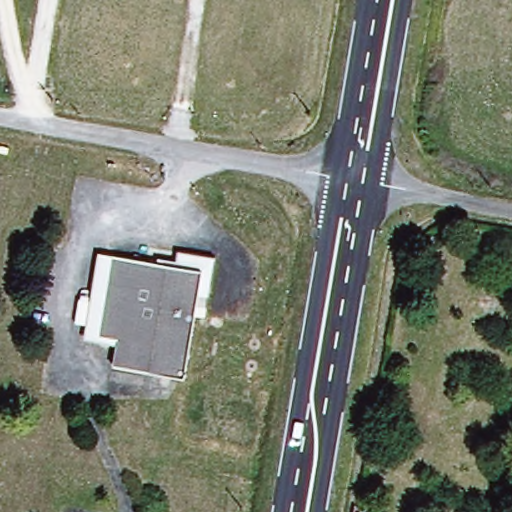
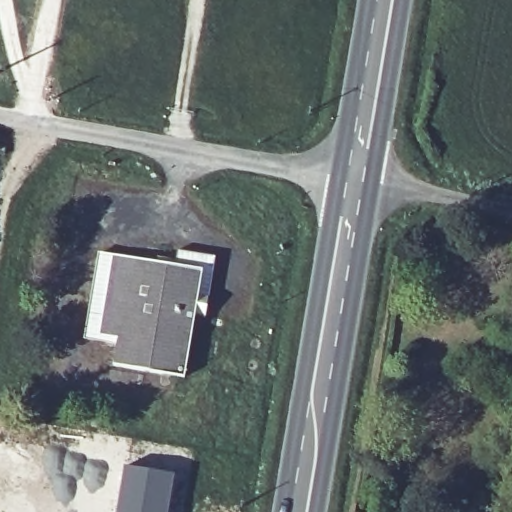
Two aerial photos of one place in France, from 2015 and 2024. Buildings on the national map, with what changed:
unchanged [(216,258),(204,321),(195,320),(184,382),(114,370),(120,341),(88,336),(101,255),(177,268),(179,253),(216,258)]
new [(175,475),(168,512),(115,512),(122,465),(175,475)]

